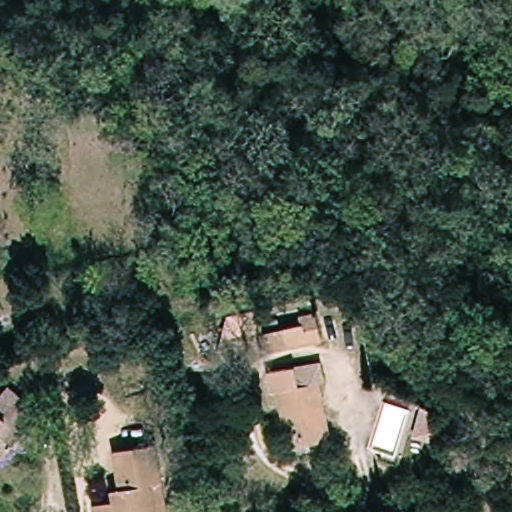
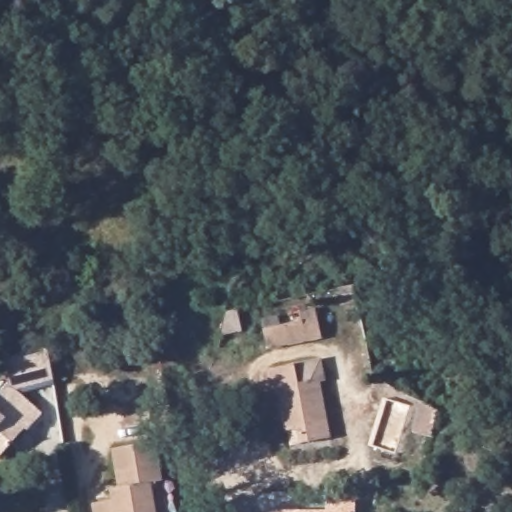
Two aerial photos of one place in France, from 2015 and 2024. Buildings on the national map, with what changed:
unchanged [(309,318),(308,309),(323,307),(328,336),(276,345),(272,325),(309,318)]
unchanged [(321,360),(324,382),(319,383),(328,443),(293,448),(291,432),(286,433),(279,388),(273,389),(270,367),(321,360)]
unchanged [(20,385),(39,401),(39,420),(34,427),(28,434),(12,454),(0,444),(0,388),(10,376),(20,385)]
unchanged [(442,407),(432,436),(416,429),(427,398),(442,407)]
unchanged [(102,509),(118,506),(117,494),(126,493),(117,447),(162,439),(170,482),(176,512),(102,512),(102,509)]
new [(356,512),(266,512),(326,510),(326,501),(356,499),(356,512)]

